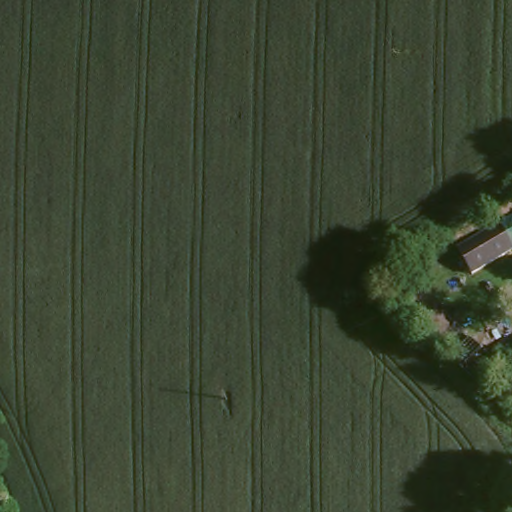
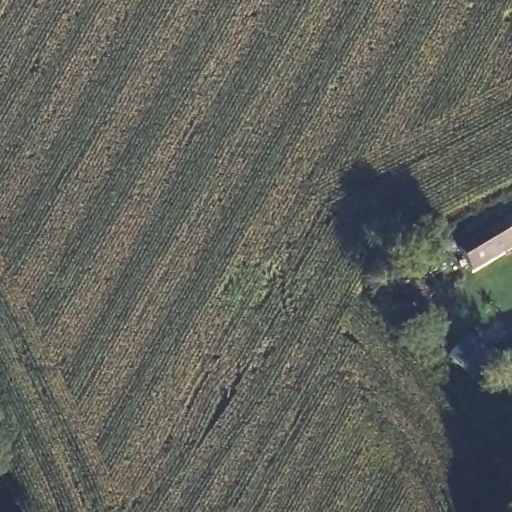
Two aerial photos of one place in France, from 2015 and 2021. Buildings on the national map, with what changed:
unchanged [(512,228),(512,253),(471,263),(466,246),(485,236),(512,228)]
unchanged [(456,360),(472,340),(501,373),(483,393),(456,360)]

